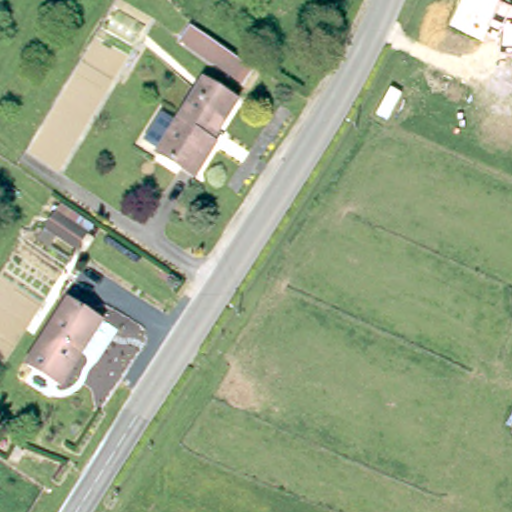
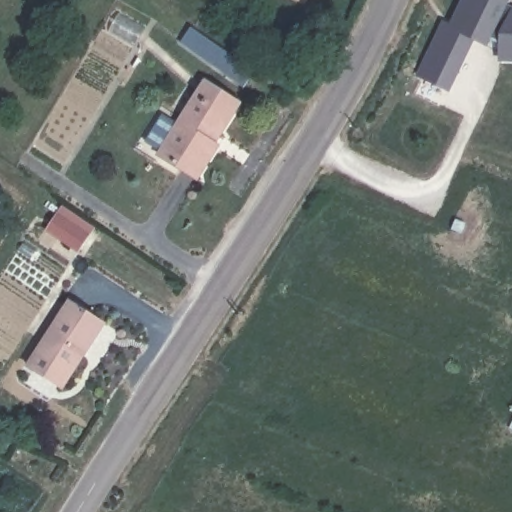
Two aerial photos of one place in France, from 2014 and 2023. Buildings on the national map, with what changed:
new [(442,18),(451,23),(462,0),(511,0),(508,4),(503,1),(486,36),(491,38),(487,47),(473,41),(450,91),(416,75),(442,18)]
new [(512,7),(512,61),(500,61),(500,41),(486,36),(503,1),(512,7)]
unchanged [(195,30),(246,63),(237,77),(185,44),(195,30)]
unchanged [(238,104),(215,142),(218,144),(196,178),(160,154),(203,81),(238,104)]
unchanged [(55,214),(87,236),(78,251),(45,229),(55,214)]
unchanged [(101,318),(60,382),(25,360),(68,296),(101,318)]
unchanged [(506,424),(512,407),(512,426),(506,424)]

